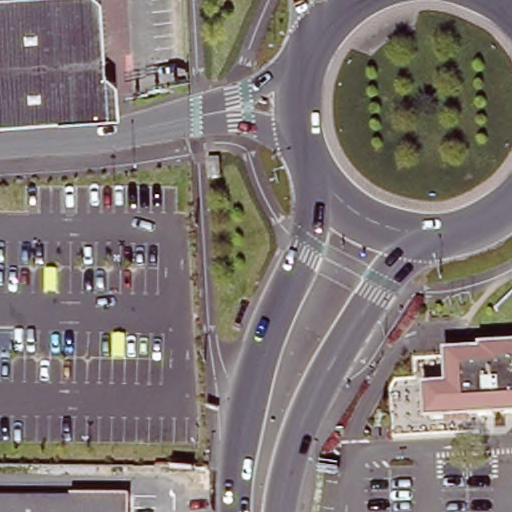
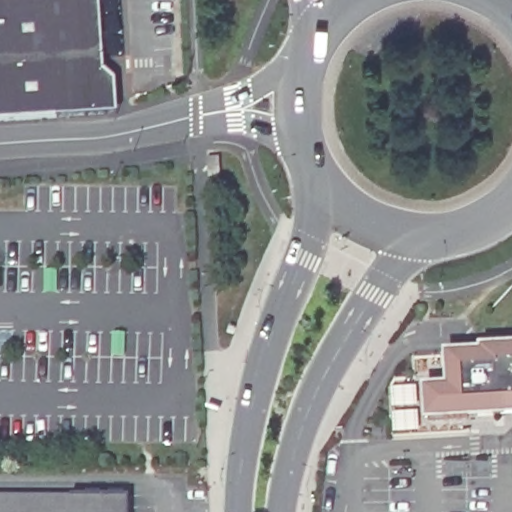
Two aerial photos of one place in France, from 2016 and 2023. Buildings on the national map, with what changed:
unchanged [(113,114),(0,121),(0,0),(97,0),(99,51),(120,50),(122,80),(112,81),(113,96),(113,114)]
unchanged [(503,413),(503,415),(425,420),(424,390),(447,389),(446,360),(449,359),(449,356),(479,355),(479,351),(480,351),(480,348),(488,348),(488,350),(512,349),(512,413),(503,413)]
unchanged [(128,499),(127,512),(0,512),(0,497),(33,497),(128,499)]

